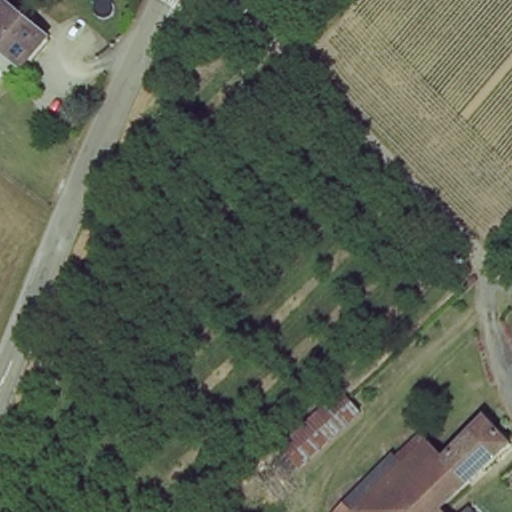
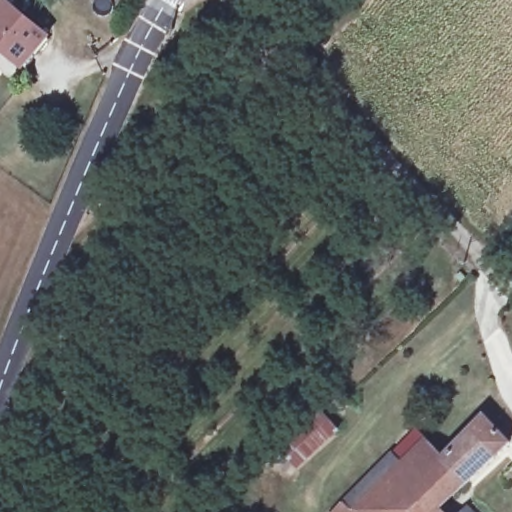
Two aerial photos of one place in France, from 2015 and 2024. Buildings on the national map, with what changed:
unchanged [(51,38),(26,70),(0,49),(0,9),(6,2),(51,38)]
unchanged [(340,389),(361,413),(252,512),(235,512),(222,492),(340,389)]
unchanged [(440,458),(459,438),(480,417),(504,442),(432,512),(396,512),(391,507),(440,458)]
unchanged [(396,512),(352,512),(362,502),(419,436),(440,458),(391,507),(396,512)]
unchanged [(465,512),(477,501),(488,512),(465,512)]

